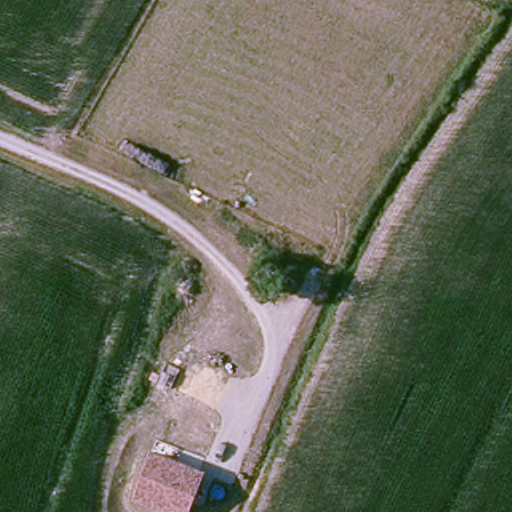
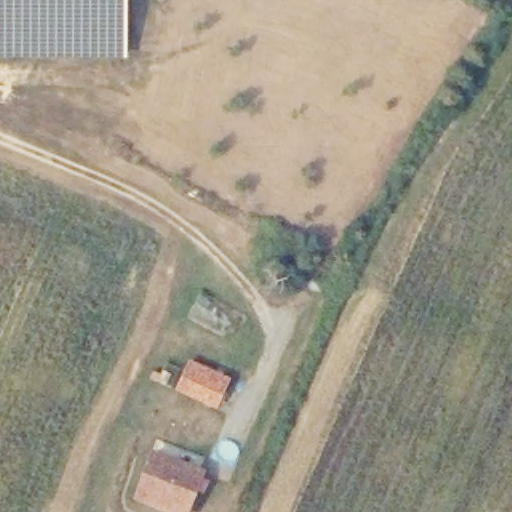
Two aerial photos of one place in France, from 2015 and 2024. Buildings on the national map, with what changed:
new [(0,60),(0,0),(125,0),(126,60),(0,60)]
new [(229,381),(217,410),(175,393),(188,363),(229,381)]
unchanged [(191,512),(174,512),(143,500),(139,498),(156,451),(161,453),(207,470),(191,512)]

